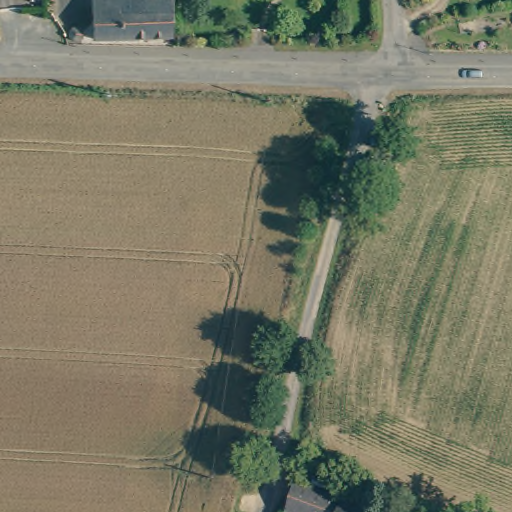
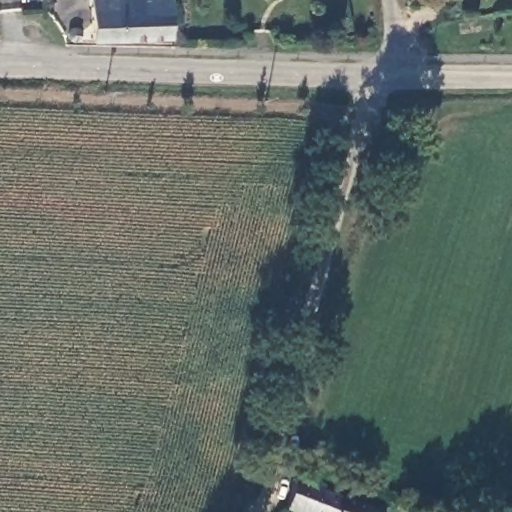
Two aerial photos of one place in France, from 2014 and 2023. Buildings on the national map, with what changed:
unchanged [(119,39),(119,37),(95,38),(95,0),(174,0),(174,38),(119,39)]
unchanged [(495,17),(496,30),(474,33),(473,20),(495,17)]
unchanged [(85,36),(82,40),(79,41),(75,41),(72,40),(70,37),(70,33),(71,30),(74,27),(78,26),(81,27),(85,30),(85,36)]
unchanged [(297,479),(305,482),(390,512),(306,512),(287,505),(297,479)]

